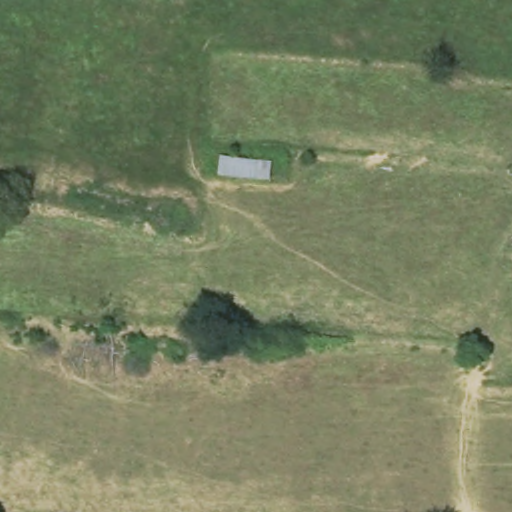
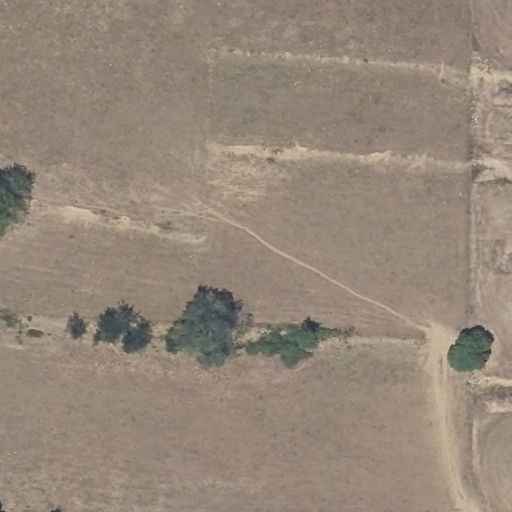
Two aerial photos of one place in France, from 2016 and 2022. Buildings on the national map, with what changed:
unchanged [(275,157),(272,182),(212,176),(217,153),(275,157)]

